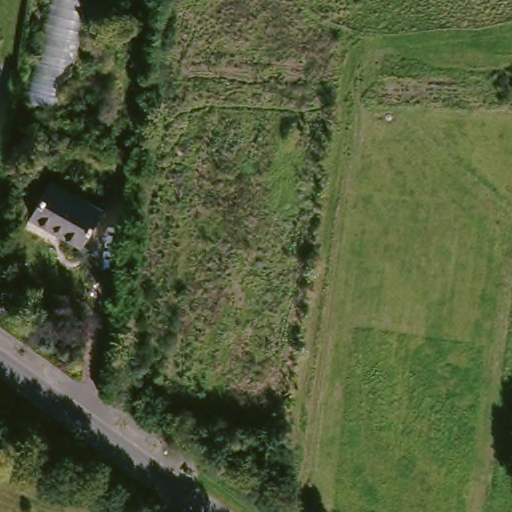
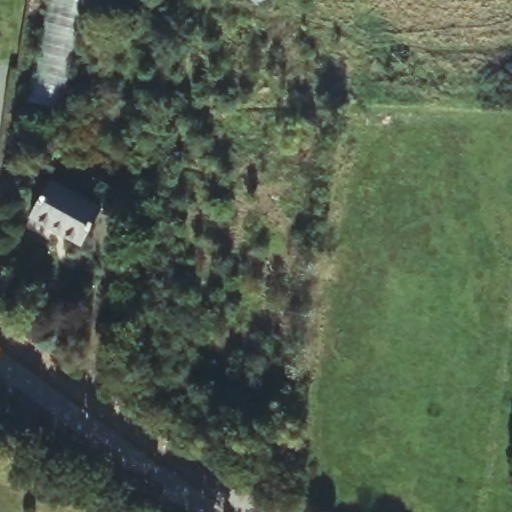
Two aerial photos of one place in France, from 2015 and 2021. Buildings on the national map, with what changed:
unchanged [(53,0),(85,0),(56,114),(24,108),(53,0)]
unchanged [(96,209),(76,245),(27,217),(47,182),(96,209)]

